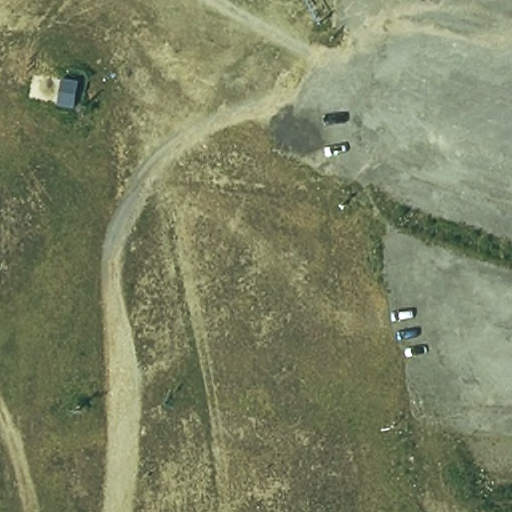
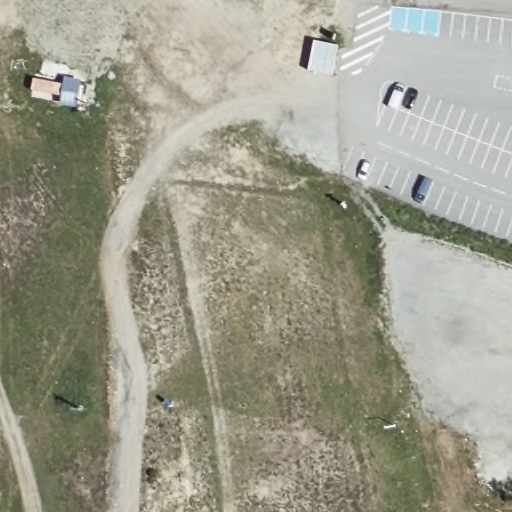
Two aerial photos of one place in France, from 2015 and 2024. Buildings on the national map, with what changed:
unchanged [(63,102),(68,72),(83,75),(80,105),(63,102)]

